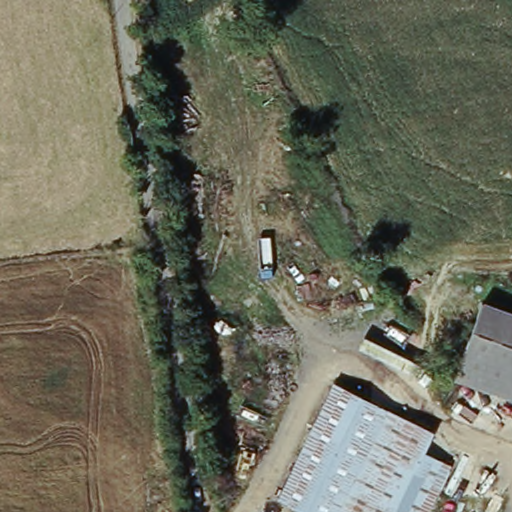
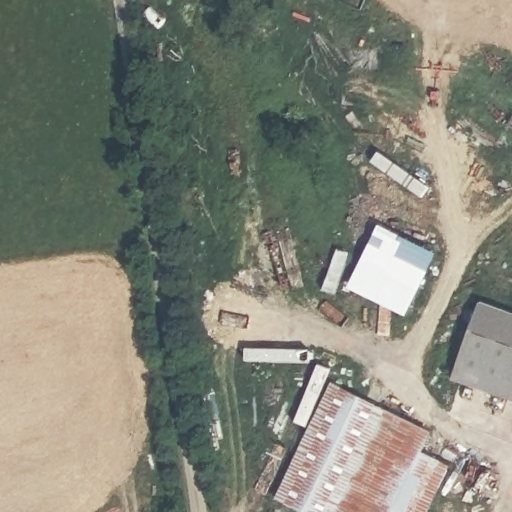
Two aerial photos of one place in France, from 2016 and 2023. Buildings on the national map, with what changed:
new [(437,255),(408,316),(349,288),(379,225),(437,255)]
unchanged [(512,322),(512,406),(456,385),(485,311),(512,322)]
unchanged [(436,439),(423,463),(450,477),(433,512),(301,512),(281,502),(335,392),(436,439)]

